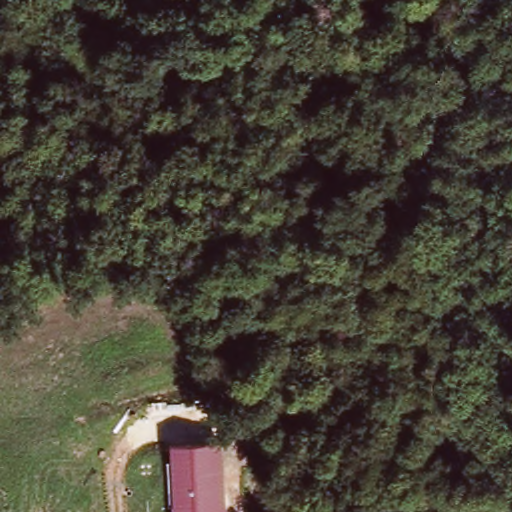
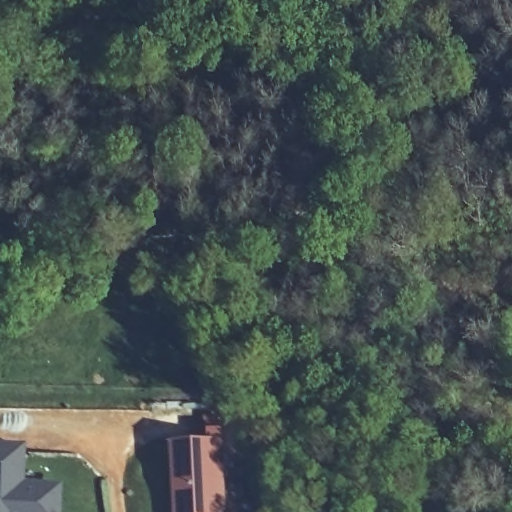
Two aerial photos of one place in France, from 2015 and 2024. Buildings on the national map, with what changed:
unchanged [(224,512),(171,512),(168,444),(222,441),(224,512)]
new [(62,485),(61,512),(0,512),(0,445),(25,446),(25,485),(62,485)]

